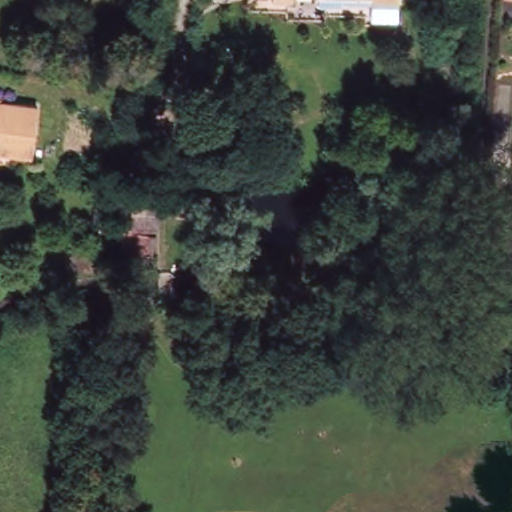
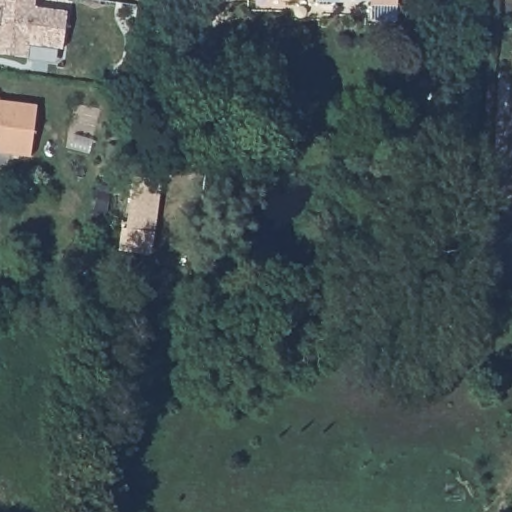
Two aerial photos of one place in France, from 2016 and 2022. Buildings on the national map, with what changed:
new [(3,5),(0,5),(0,0),(35,0),(34,7),(67,12),(62,49),(29,45),(27,57),(0,54),(0,26),(1,27),(3,5)]
unchanged [(29,162),(0,159),(0,105),(36,110),(29,162)]

